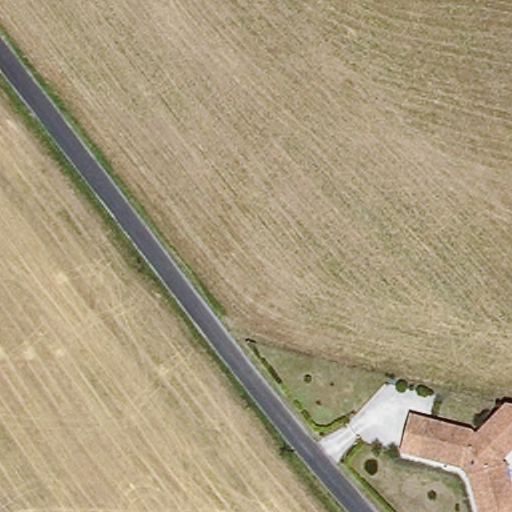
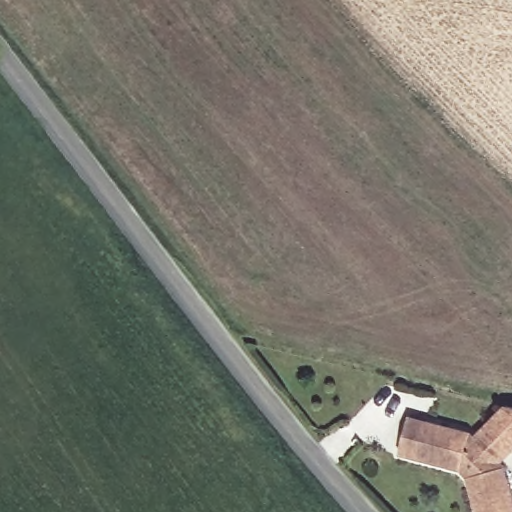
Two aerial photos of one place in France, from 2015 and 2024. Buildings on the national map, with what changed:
unchanged [(479,435),(511,405),(512,405),(512,453),(504,462),(507,466),(512,485),(512,512),(478,512),(471,478),(461,468),(419,454),(401,452),(410,412),(430,417),(474,430),(479,435)]

